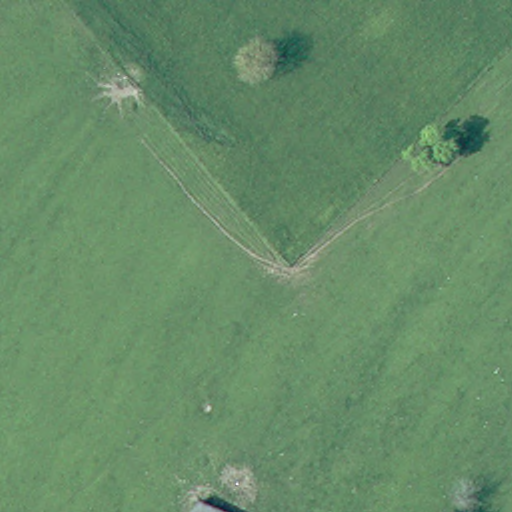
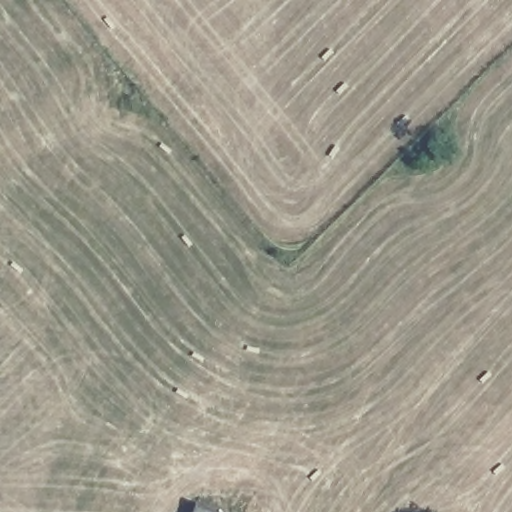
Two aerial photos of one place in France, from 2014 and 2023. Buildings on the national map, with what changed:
unchanged [(193,491),(241,512),(189,512),(193,491)]

